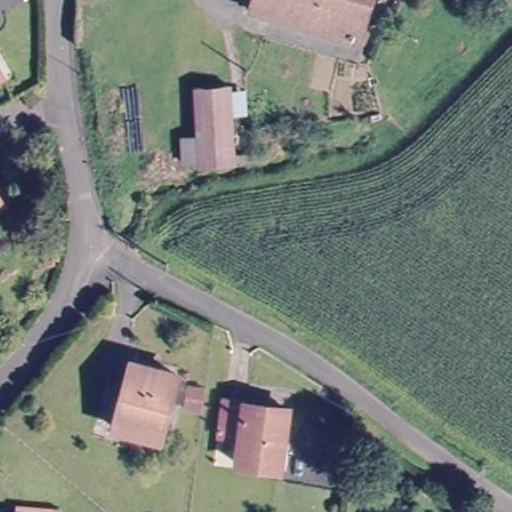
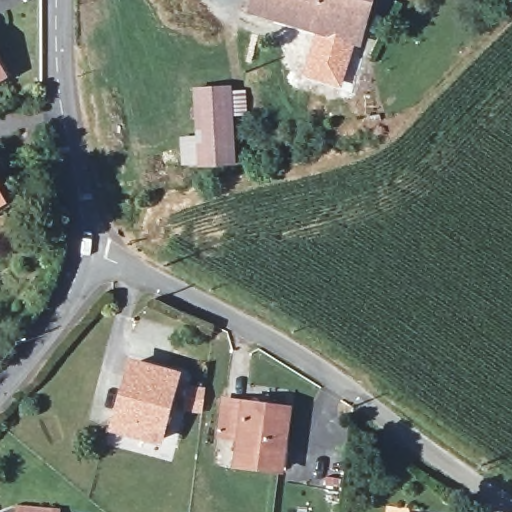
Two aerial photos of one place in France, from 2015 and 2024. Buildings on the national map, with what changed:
unchanged [(355,44),(345,41),(247,11),(250,0),(369,0),(355,44)]
new [(343,89),(303,77),(315,32),(345,41),(355,44),(343,89)]
unchanged [(0,75),(0,70),(2,74),(0,75)]
unchanged [(247,168),(237,168),(201,171),(201,168),(185,169),(184,147),(199,147),(195,96),(233,92),(237,160),(247,160),(247,168)]
unchanged [(0,209),(0,203),(3,208),(0,209)]
unchanged [(165,435),(121,424),(138,358),(182,370),(165,435)]
unchanged [(190,404),(193,380),(209,382),(206,406),(190,404)]
unchanged [(286,409),(279,469),(238,465),(241,439),(220,436),(224,403),(286,409)]

